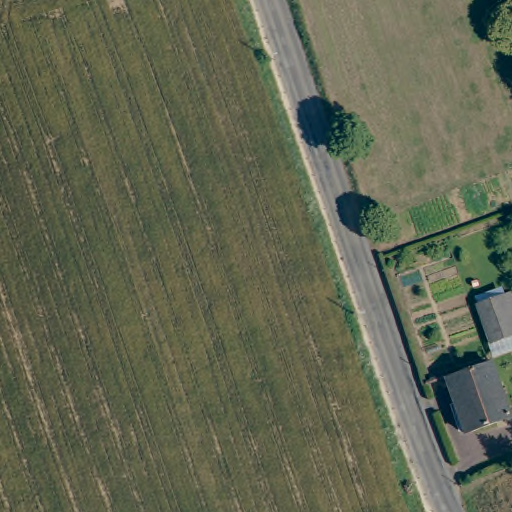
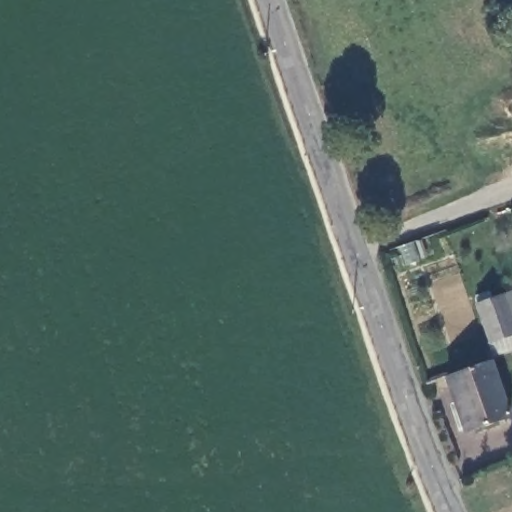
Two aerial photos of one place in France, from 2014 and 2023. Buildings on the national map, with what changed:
unchanged [(493,343),(480,306),(512,293),(512,336),(493,343)]
unchanged [(510,417),(467,432),(447,379),(491,362),(510,417)]

